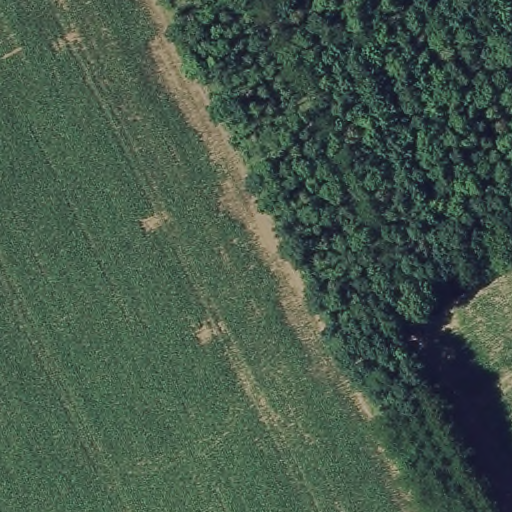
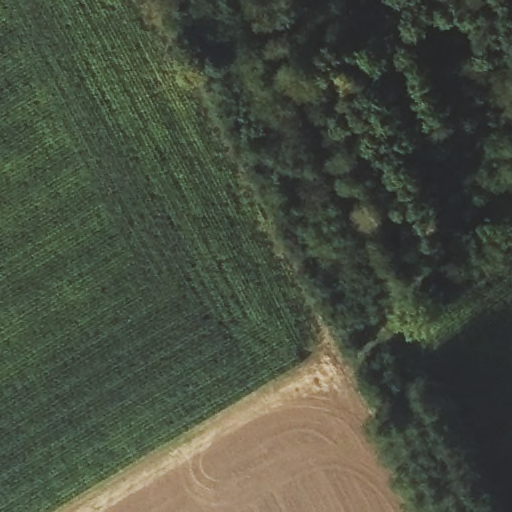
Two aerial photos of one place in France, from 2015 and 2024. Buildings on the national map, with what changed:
[]

